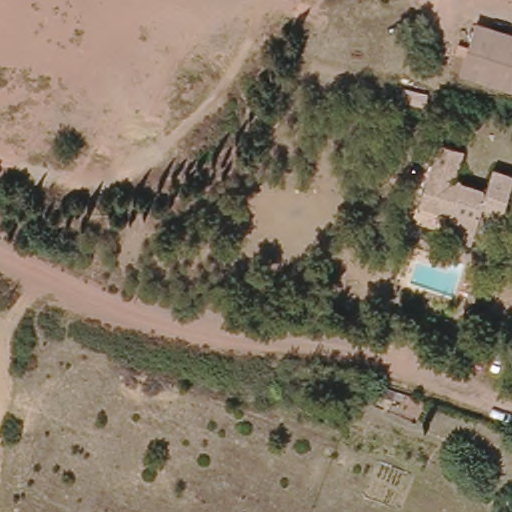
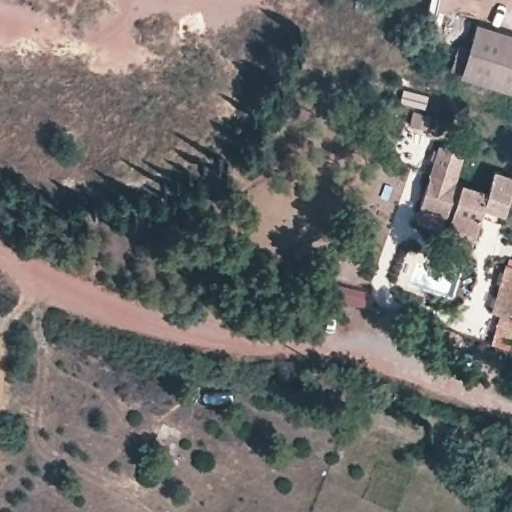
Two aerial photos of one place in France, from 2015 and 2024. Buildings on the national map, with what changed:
unchanged [(462,67),(477,19),(512,30),(512,83),(462,67)]
unchanged [(452,216),(420,205),(440,145),(464,151),(455,180),(488,191),(494,169),(512,175),(512,187),(504,211),(484,205),(476,234),(472,243),(446,235),(449,225),(452,216)]
new [(511,348),(492,343),(499,315),(491,312),(506,263),(512,264),(512,342),(511,348)]

